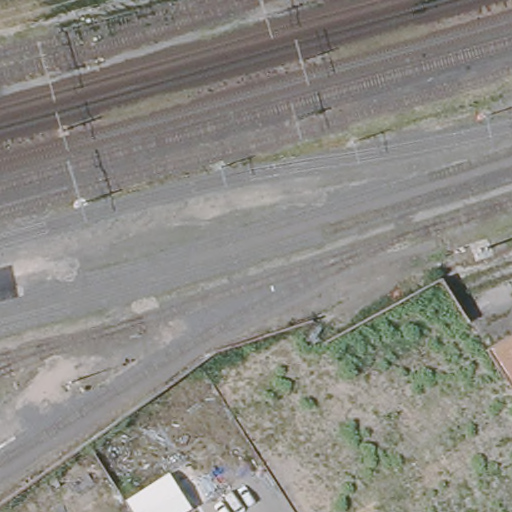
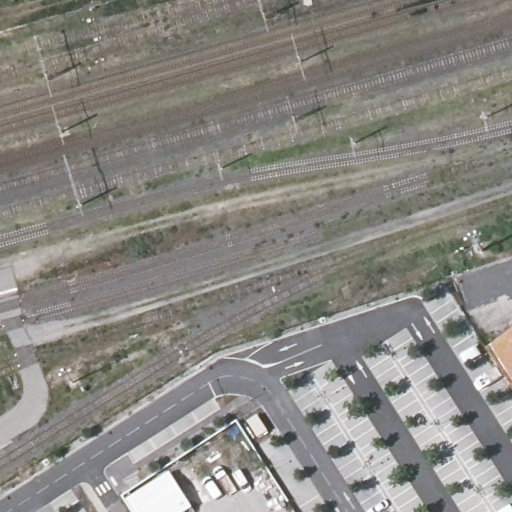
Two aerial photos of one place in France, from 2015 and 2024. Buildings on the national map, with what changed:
unchanged [(512,333),(512,388),(486,349),(512,333)]
unchanged [(185,512),(133,512),(125,499),(170,470),(192,507),(185,512)]

